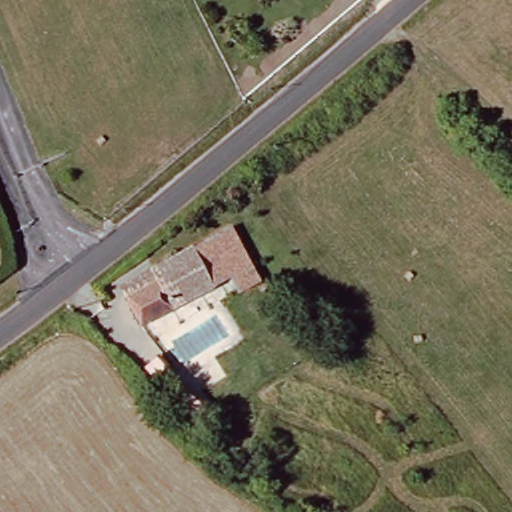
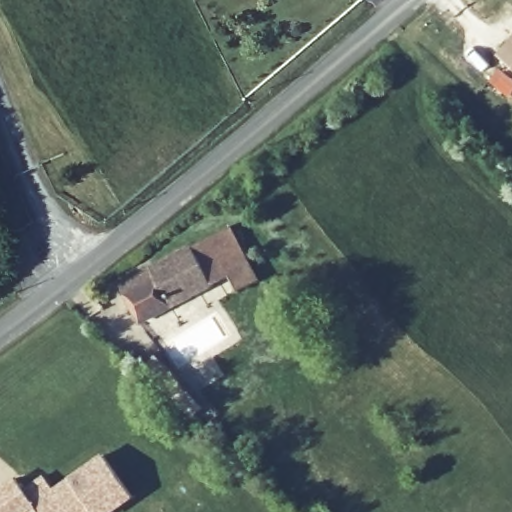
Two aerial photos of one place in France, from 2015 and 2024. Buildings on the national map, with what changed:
new [(512,67),(499,55),(512,39),(512,67)]
unchanged [(155,271),(232,229),(245,249),(263,281),(245,293),(235,278),(145,327),(129,298),(123,289),(155,271)]
unchanged [(192,399),(180,406),(177,401),(169,389),(181,382),(187,391),(192,399)]
new [(35,505),(25,512),(0,512),(0,490),(15,479),(24,489),(44,475),(54,490),(104,455),(133,496),(110,512),(40,512),(35,505)]

